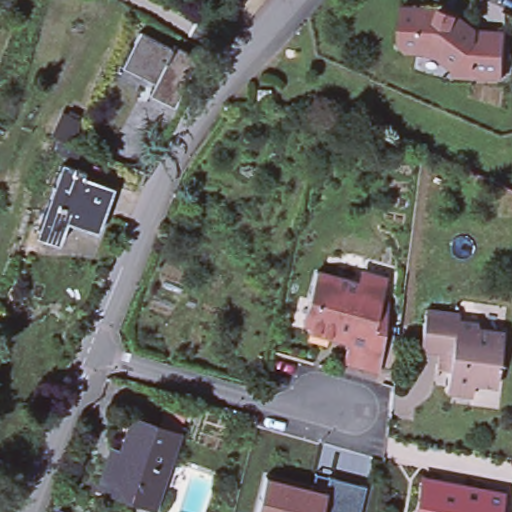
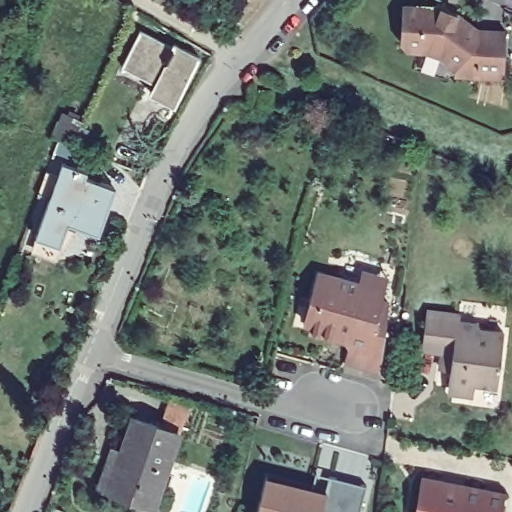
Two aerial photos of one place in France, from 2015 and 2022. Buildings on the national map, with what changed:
unchanged [(451,8),(478,29),(506,30),(504,75),(457,73),(458,66),(445,53),(435,50),(410,49),(404,44),(406,6),(451,8)]
unchanged [(173,45),(175,41),(198,53),(174,99),(150,86),(154,79),(122,63),(140,28),(173,45)]
unchanged [(255,91),(268,91),(267,102),(255,102),(255,91)]
unchanged [(81,117),(90,96),(112,105),(92,152),(50,134),(59,109),(81,117)]
unchanged [(82,168),(80,174),(110,185),(93,229),(63,218),(55,241),(31,232),(59,159),(82,168)]
unchanged [(390,302),(381,370),(345,361),(351,338),(348,333),(335,329),(333,335),(308,327),(309,323),(302,321),(309,298),(318,270),(360,282),(363,270),(389,278),(386,289),(383,300),(390,302)]
unchanged [(437,349),(421,347),(425,313),(457,317),(457,324),(504,330),(497,383),(474,380),(472,393),(452,390),(448,384),(450,367),(436,364),(437,349)]
unchanged [(180,434),(155,505),(109,489),(133,418),(180,434)]
unchanged [(312,482),(316,468),(331,471),(367,480),(360,512),(256,512),(266,472),(312,482)]
unchanged [(423,476),(427,475),(447,480),(447,484),(461,487),(462,482),(489,487),(488,492),(502,495),(503,490),(505,490),(500,512),(415,512),(421,480),(423,476)]

